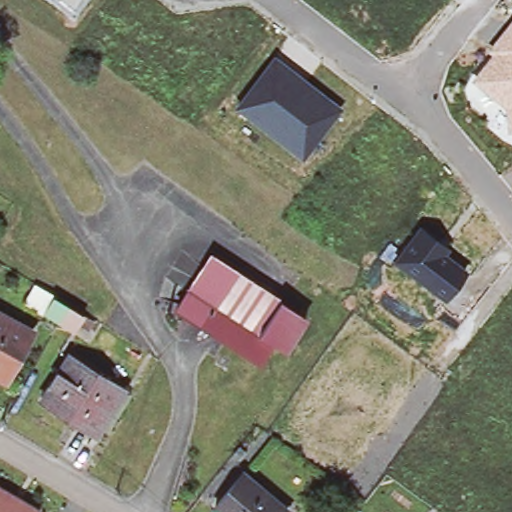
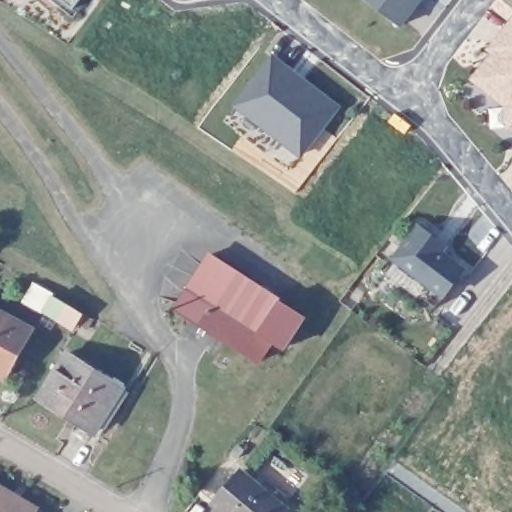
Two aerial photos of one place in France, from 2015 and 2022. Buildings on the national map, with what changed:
unchanged [(65,0),(79,0),(73,6),(65,0)]
new [(363,0),(423,0),(402,28),(363,0)]
unchanged [(505,105),(470,78),(489,53),(485,49),(512,17),(512,130),(506,130),(505,105)]
unchanged [(235,104),(273,52),(343,105),(302,156),(235,104)]
unchanged [(442,297),(392,258),(417,224),(450,246),(446,252),(467,267),(442,297)]
unchanged [(208,254),(277,300),(275,303),(302,321),(282,349),(270,340),(255,362),(222,339),(235,321),(187,287),(208,254)]
unchanged [(32,281),(83,312),(72,331),(20,300),(32,281)]
unchanged [(187,287),(235,321),(222,339),(173,306),(187,287)]
unchanged [(35,334),(19,363),(15,369),(7,385),(0,382),(0,317),(35,334)]
unchanged [(72,354),(127,389),(99,433),(45,399),(72,354)]
unchanged [(244,435),(250,440),(245,448),(237,443),(244,435)]
unchanged [(242,473),(287,509),(284,512),(222,512),(215,506),(242,473)]
unchanged [(23,494),(38,503),(33,512),(0,512),(0,481),(23,494)]

